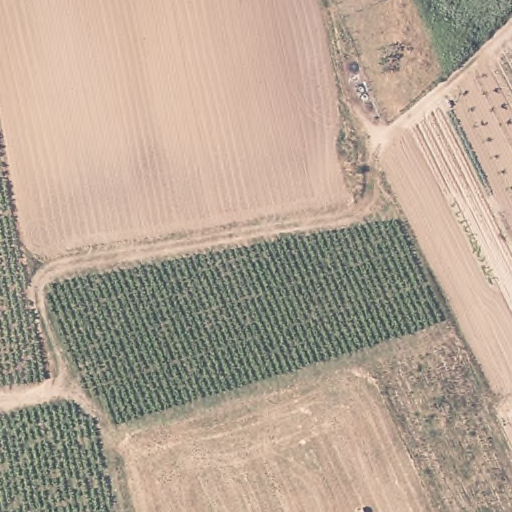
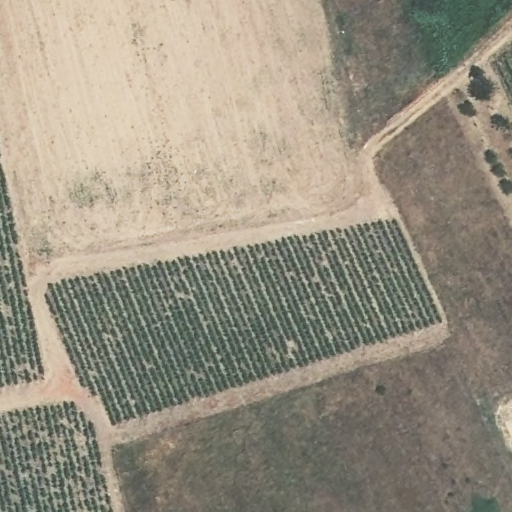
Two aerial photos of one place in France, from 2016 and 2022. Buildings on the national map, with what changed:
[]

